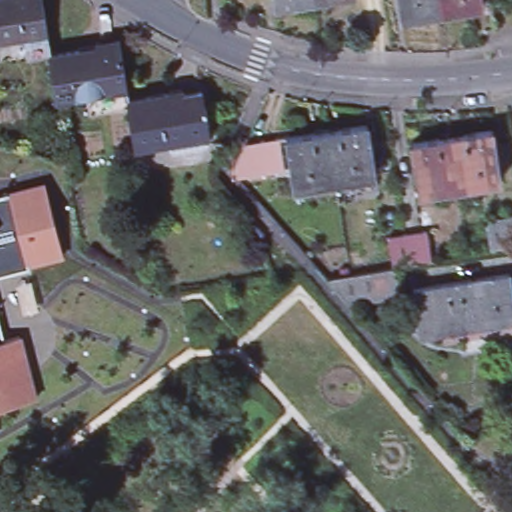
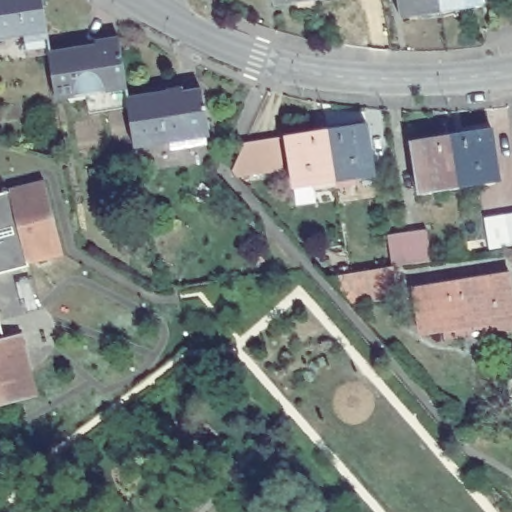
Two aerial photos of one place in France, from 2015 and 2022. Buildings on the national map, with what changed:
unchanged [(22,37),(21,29),(0,32),(0,0),(40,0),(45,33),(22,37)]
unchanged [(274,0),(285,0),(275,1),(274,0)]
unchanged [(420,17),(400,19),(396,0),(438,0),(439,6),(418,10),(420,17)]
unchanged [(462,3),(439,6),(438,0),(480,0),(482,7),(462,10),(462,3)]
unchanged [(116,31),(126,90),(89,96),(87,89),(55,94),(54,84),(47,49),(97,40),(97,34),(116,31)]
unchanged [(166,89),(166,86),(182,84),(182,89),(203,85),(205,100),(207,100),(212,129),(204,129),(205,139),(172,143),(172,135),(135,141),(127,95),(166,89)]
unchanged [(379,172),(357,175),(356,170),(337,173),(331,136),(329,128),(371,122),(379,172)]
unchanged [(318,175),(319,182),(297,184),(288,134),(329,128),(331,136),(337,173),(318,175)]
unchanged [(477,182),(476,177),(456,180),(449,134),(490,128),(498,178),(477,182)]
unchanged [(264,136),(282,134),(286,166),(268,168),(237,169),(251,138),(264,136)]
unchanged [(409,140),(449,134),(456,180),(438,184),(439,188),(417,191),(409,140)]
unchanged [(61,252),(26,260),(27,264),(0,271),(0,191),(43,180),(61,252)]
unchanged [(507,239),(487,242),(484,213),(502,210),(512,209),(512,237),(507,239)]
unchanged [(387,230),(403,228),(426,225),(431,255),(408,259),(395,260),(399,291),(351,298),(327,270),(349,268),(392,261),(387,230)]
unchanged [(487,313),(489,321),(477,323),(468,324),(462,279),(512,272),(512,309),(487,313)]
unchanged [(417,286),(462,279),(468,324),(424,330),(417,286)]
unchanged [(489,321),(487,313),(512,309),(512,341),(480,344),(477,323),(489,321)]
unchanged [(17,332),(34,395),(0,403),(0,328),(2,336),(17,332)]
unchanged [(512,384),(512,414),(511,414),(507,385),(512,384)]

